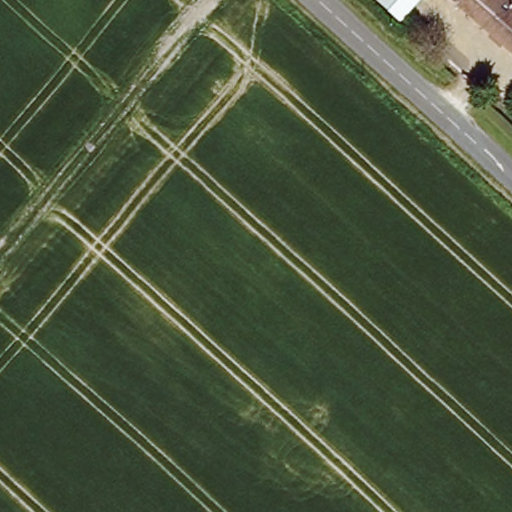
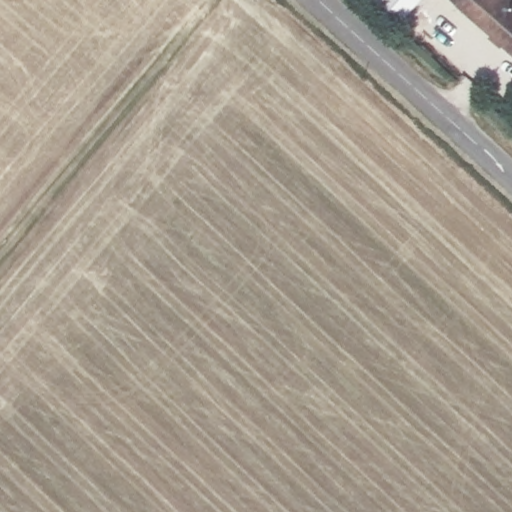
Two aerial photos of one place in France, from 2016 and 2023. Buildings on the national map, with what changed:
unchanged [(376,0),(421,0),(402,22),(376,0)]
unchanged [(446,0),(512,0),(512,60),(446,0)]

